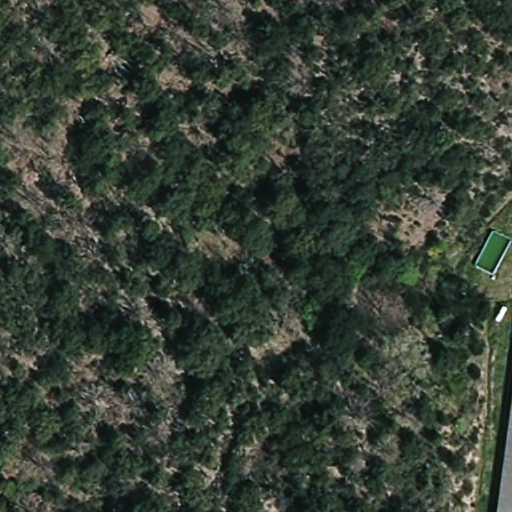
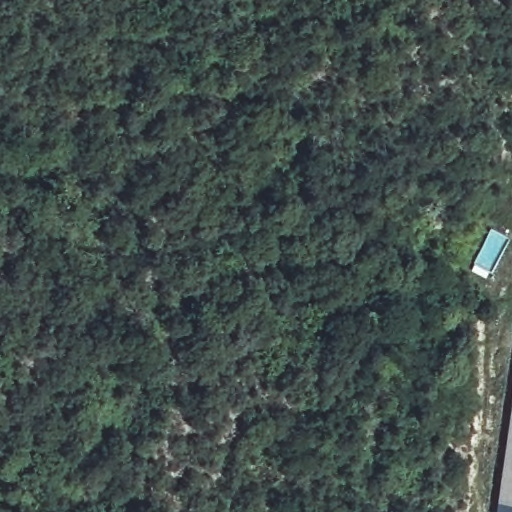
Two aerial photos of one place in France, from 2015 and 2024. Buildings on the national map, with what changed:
unchanged [(512,430),(512,508),(500,506),(512,430)]
unchanged [(512,508),(512,512),(499,512),(500,506),(512,508)]

